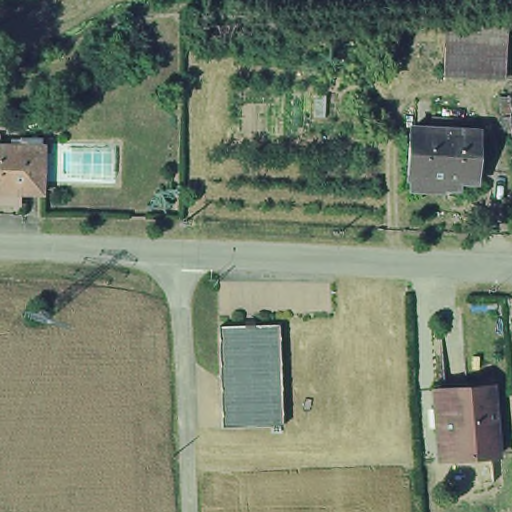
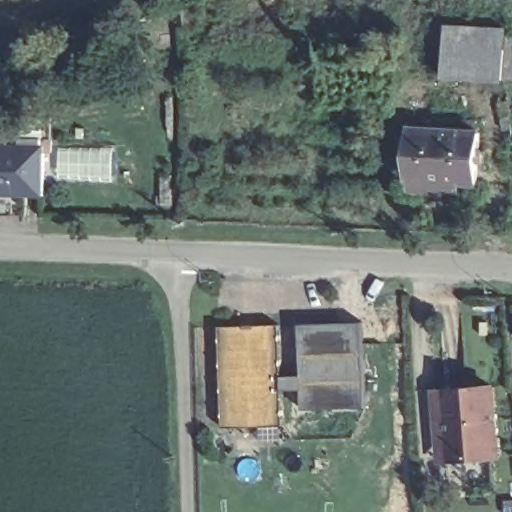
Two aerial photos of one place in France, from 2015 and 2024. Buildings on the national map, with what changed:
unchanged [(440,51),(440,32),(502,33),(501,53),(440,51)]
unchanged [(500,82),(440,82),(440,51),(501,53),(500,82)]
unchanged [(475,137),(472,187),(457,187),(456,194),(440,194),(440,197),(407,196),(407,186),(402,185),(405,135),(475,137)]
unchanged [(0,147),(12,147),(12,139),(31,139),(31,147),(34,147),(33,195),(15,195),(15,205),(0,204),(0,147)]
new [(282,377),(301,376),(299,323),(362,322),(365,407),(302,409),(302,391),(282,391),(282,377)]
unchanged [(284,430),(222,432),(218,335),(280,331),(284,430)]
unchanged [(490,467),(429,468),(425,388),(490,387),(490,467)]

